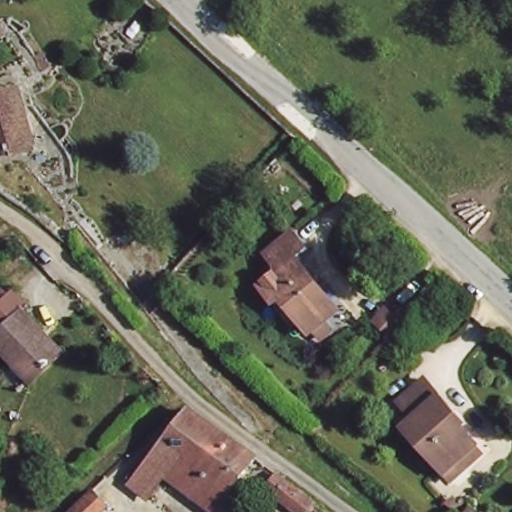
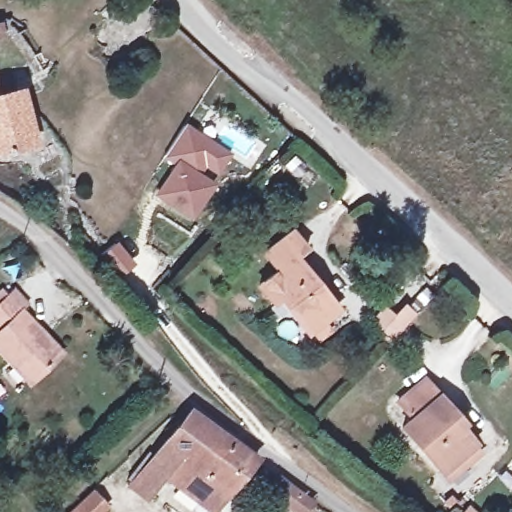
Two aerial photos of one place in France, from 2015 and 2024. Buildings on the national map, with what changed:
unchanged [(21,117),(5,120),(9,144),(0,145),(0,95),(17,93),(21,117)]
new [(231,153),(217,175),(205,166),(200,173),(217,184),(194,219),(155,196),(174,165),(162,158),(185,124),(231,153)]
unchanged [(320,336),(313,326),(289,292),(278,299),(264,277),(284,262),(274,248),(302,227),(316,245),(306,252),(342,305),(326,317),(333,327),(320,336)]
unchanged [(15,316),(32,334),(54,359),(27,384),(23,388),(0,364),(0,297),(2,299),(6,295),(20,311),(15,316)]
unchanged [(393,314),(403,304),(412,316),(389,344),(369,328),(384,306),(393,314)]
unchanged [(451,474),(444,465),(407,419),(418,411),(403,393),(430,370),(459,404),(452,409),(477,439),(484,448),(451,474)]
unchanged [(130,489),(137,480),(190,416),(193,418),(256,461),(209,511),(166,476),(153,492),(144,502),(130,489)]
unchanged [(269,483),(281,473),(311,503),(300,512),(294,512),(269,483)]
unchanged [(97,490),(107,501),(110,504),(102,512),(73,512),(97,490)]

